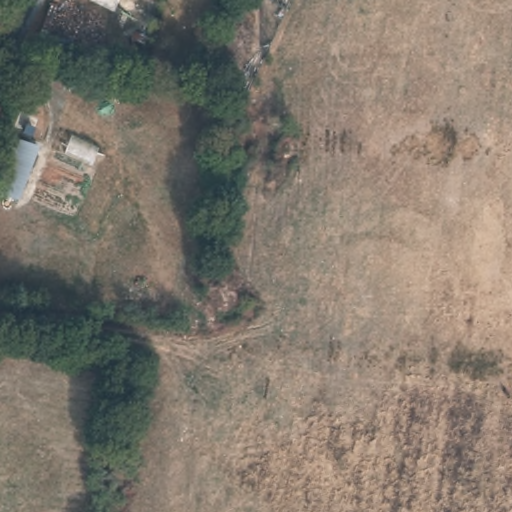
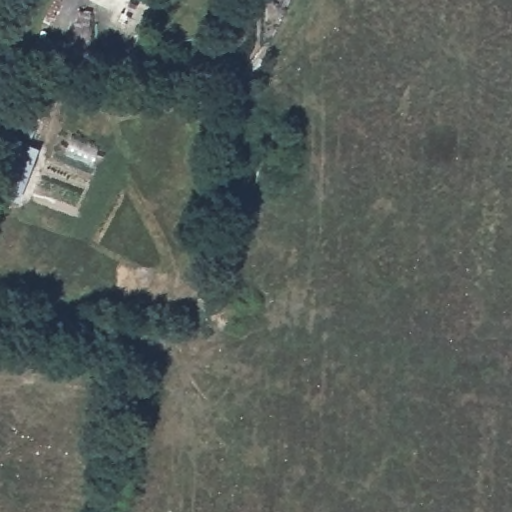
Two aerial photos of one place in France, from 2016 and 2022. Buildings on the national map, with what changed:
unchanged [(40,147),(20,200),(0,193),(0,183),(17,140),(40,147)]

